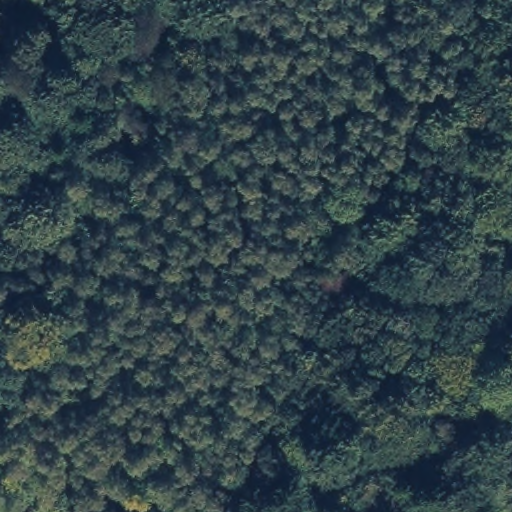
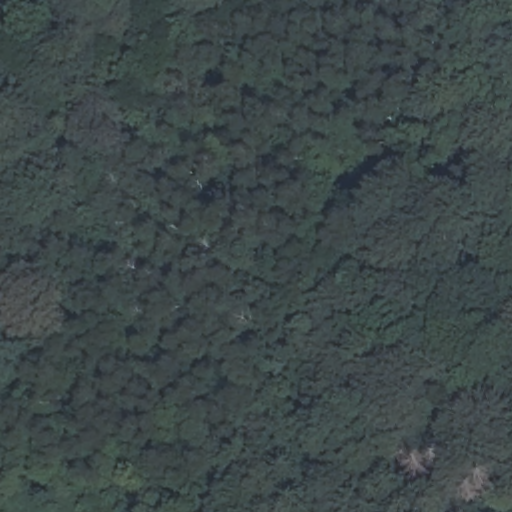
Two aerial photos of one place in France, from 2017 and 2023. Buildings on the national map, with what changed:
unchanged [(42,512),(0,512),(0,498),(42,512)]

